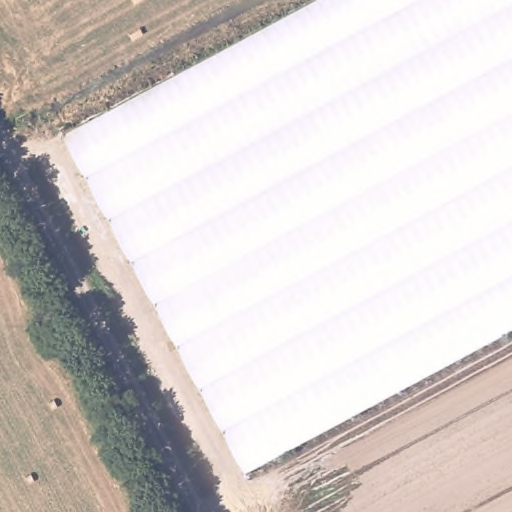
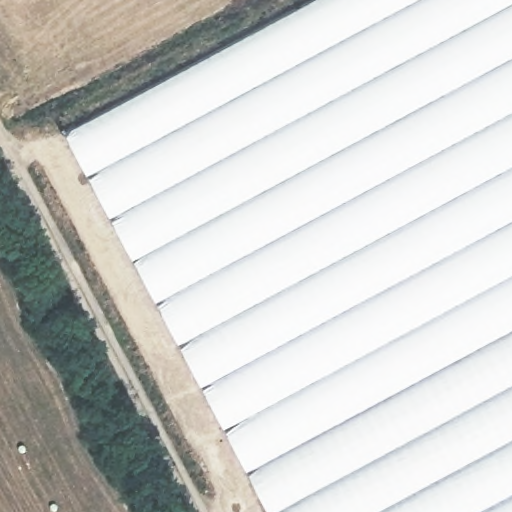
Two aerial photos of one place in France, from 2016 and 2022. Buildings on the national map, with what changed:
unchanged [(64,135),(317,0),(512,0),(512,330),(247,471),(64,135)]
new [(512,512),(269,512),(247,471),(512,330),(512,512)]

